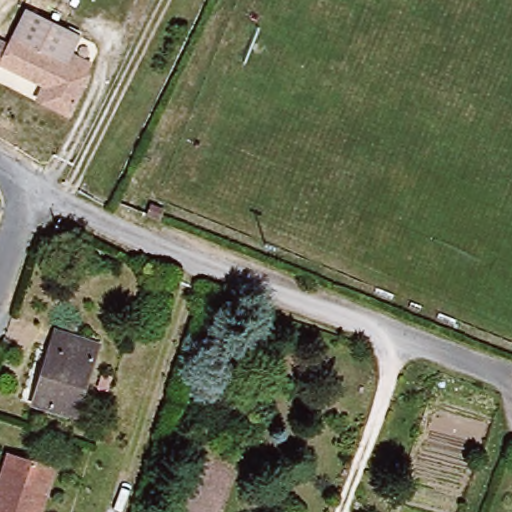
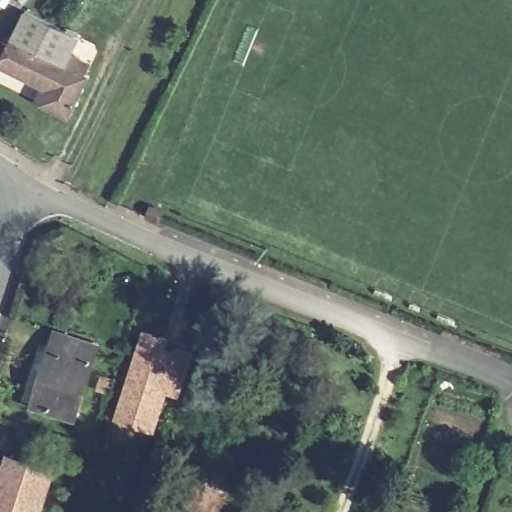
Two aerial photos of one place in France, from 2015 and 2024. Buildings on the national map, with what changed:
unchanged [(73,52),(92,62),(88,71),(90,73),(88,78),(66,66),(69,59),(63,55),(60,62),(11,36),(13,33),(14,34),(27,8),(82,35),(73,52)]
unchanged [(69,115),(43,101),(49,88),(0,63),(0,64),(0,38),(8,42),(11,36),(60,62),(63,55),(69,59),(66,66),(88,78),(69,115)]
new [(143,327),(196,347),(180,396),(169,393),(155,433),(113,418),(143,327)]
unchanged [(94,344),(71,416),(31,403),(54,332),(94,344)]
unchanged [(47,467),(32,511),(34,512),(0,512),(0,459),(2,452),(47,467)]

